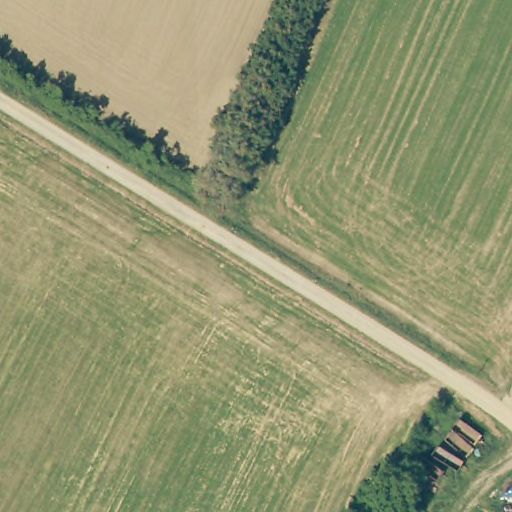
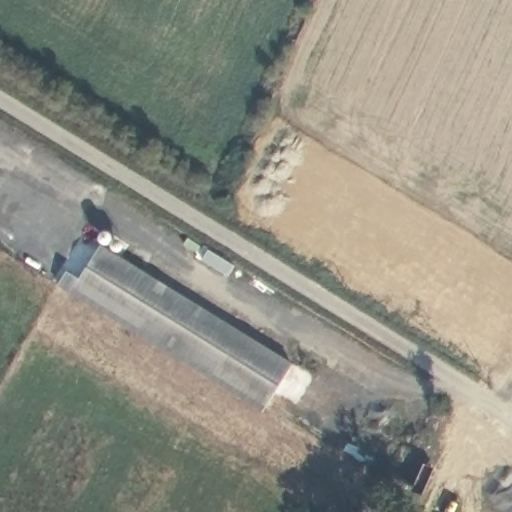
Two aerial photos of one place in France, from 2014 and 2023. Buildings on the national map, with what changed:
new [(265,411),(60,287),(68,272),(81,279),(101,246),(293,364),(265,411)]

